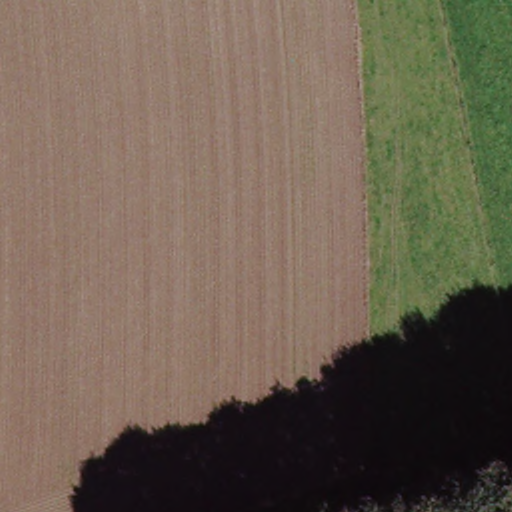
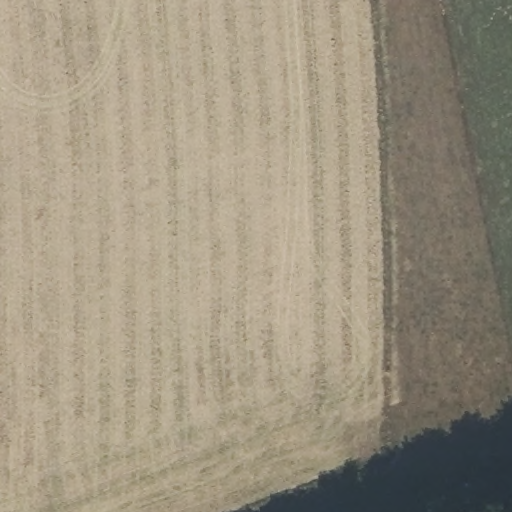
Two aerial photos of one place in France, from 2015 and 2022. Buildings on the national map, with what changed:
[]

